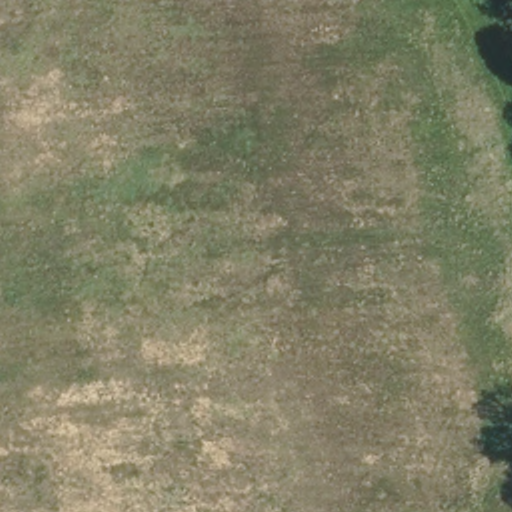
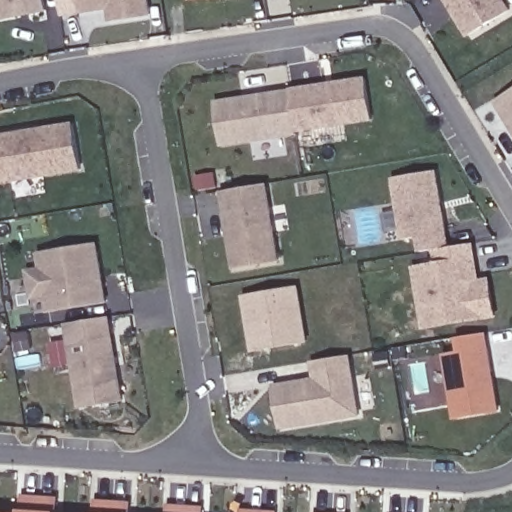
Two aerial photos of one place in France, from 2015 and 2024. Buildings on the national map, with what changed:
new [(0,19),(0,0),(44,0),(46,11),(0,19)]
new [(81,9),(80,0),(149,0),(151,13),(123,16),(111,18),(110,6),(81,9)]
new [(470,37),(448,0),(504,0),(511,11),(470,37)]
new [(372,118),(297,131),(291,90),(365,79),(372,118)]
new [(298,134),(223,145),(216,103),(291,91),(298,134)]
new [(498,103),(512,94),(512,125),(498,103)]
new [(7,182),(0,183),(0,136),(74,124),(81,170),(7,182)]
new [(449,248),(422,252),(420,237),(405,240),(394,178),(436,171),(449,248)]
new [(267,184),(280,260),(235,267),(224,191),(267,184)]
new [(423,309),(417,269),(440,265),(438,250),(472,244),(478,276),(479,284),(490,282),(495,316),(449,324),(426,327),(423,309)]
new [(40,254),(97,245),(107,302),(50,312),(47,296),(34,298),(30,272),(43,270),(40,254)]
new [(295,287),(305,341),(252,350),(243,295),(295,287)]
new [(110,317),(124,401),(82,408),(69,324),(110,317)]
new [(458,352),(456,337),(483,332),(496,411),(453,417),(442,354),(458,352)]
new [(313,379),(310,362),(347,356),(357,415),(279,428),(272,387),(313,379)]
new [(22,498),(54,500),(53,512),(21,512),(22,498)]
new [(96,503),(127,505),(126,512),(95,512),(96,503)]
new [(169,507),(199,510),(199,512),(168,512),(169,507)]

